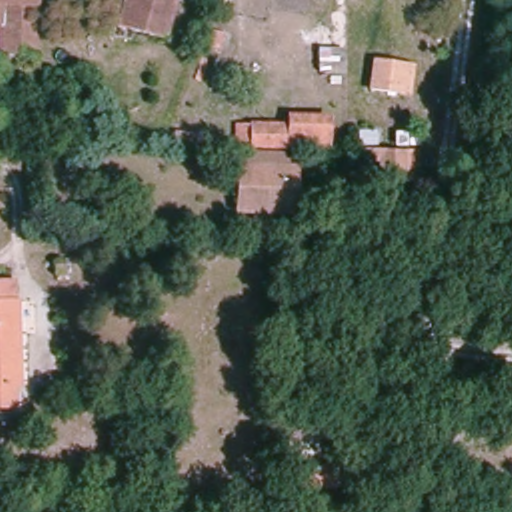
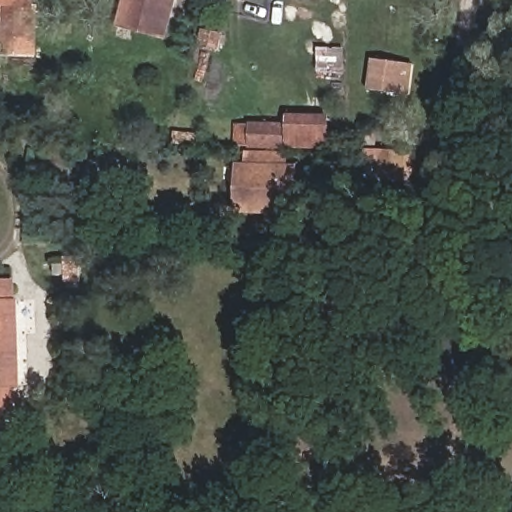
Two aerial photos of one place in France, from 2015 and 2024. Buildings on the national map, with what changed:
unchanged [(37,77),(2,75),(2,53),(6,53),(5,30),(0,30),(0,0),(41,0),(37,77)]
unchanged [(186,26),(169,22),(165,39),(119,26),(126,0),(179,0),(190,3),(186,26)]
unchanged [(221,32),(221,48),(205,48),(207,32),(221,32)]
unchanged [(348,46),(347,71),(317,71),(317,46),(348,46)]
unchanged [(373,64),(399,62),(411,62),(413,93),(400,94),(373,96),(373,64)]
unchanged [(329,146),(248,147),(248,122),(284,123),(286,114),(332,114),(329,146)]
unchanged [(194,145),(172,144),(174,130),(195,132),(194,145)]
unchanged [(406,179),(382,178),(382,159),(370,158),(370,150),(407,151),(406,179)]
unchanged [(292,168),(294,211),(235,211),(237,168),(292,168)]
unchanged [(15,381),(12,382),(12,403),(0,403),(0,299),(13,299),(15,381)]

